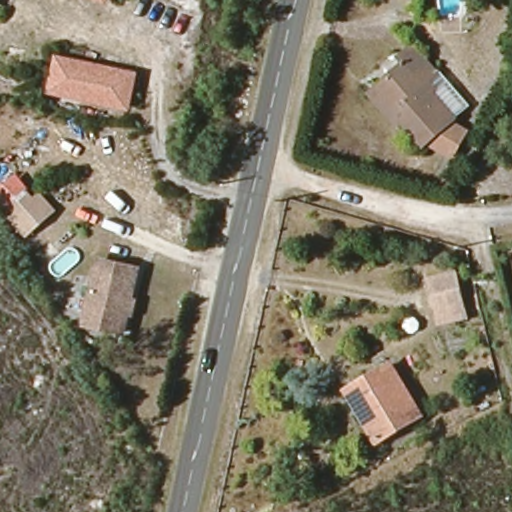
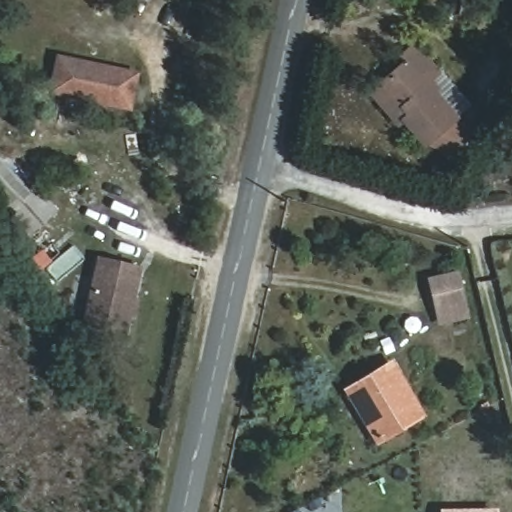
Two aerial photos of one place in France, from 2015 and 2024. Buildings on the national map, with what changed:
unchanged [(94,0),(111,0),(108,7),(94,0)]
unchanged [(453,158),(424,145),(401,124),(396,129),(367,97),(377,88),(402,64),(396,54),(409,45),(434,73),(428,80),(435,88),(431,93),(452,117),(447,123),(464,134),(453,158)]
unchanged [(134,112),(47,94),(57,53),(141,71),(134,112)]
unchanged [(27,238),(11,219),(17,213),(10,205),(30,189),(37,198),(42,193),(57,210),(27,238)]
unchanged [(123,328),(83,320),(94,258),(134,264),(123,328)]
unchanged [(433,309),(424,283),(450,274),(459,301),(463,314),(437,323),(433,309)]
unchanged [(352,391),(389,369),(417,417),(373,444),(363,427),(344,396),(352,391)]
new [(440,509),(498,509),(498,512),(440,512),(440,509)]

